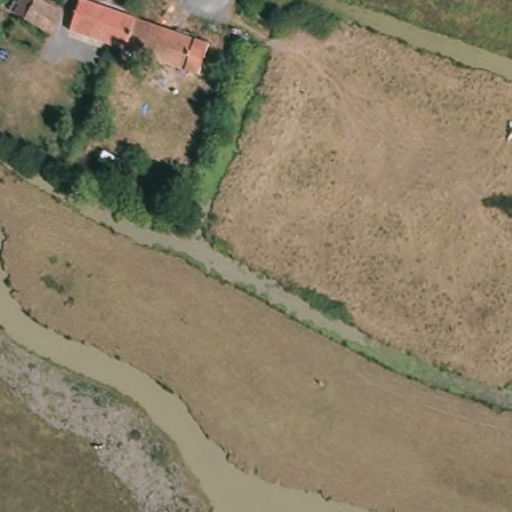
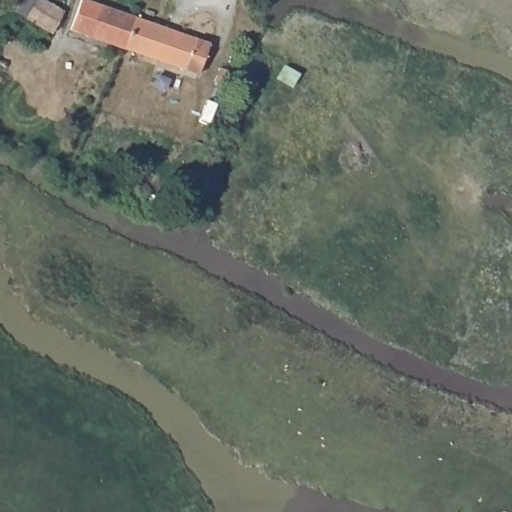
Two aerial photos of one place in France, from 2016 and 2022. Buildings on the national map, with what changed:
unchanged [(49,34),(21,20),(29,0),(33,0),(60,12),(49,34)]
unchanged [(73,30),(82,4),(136,24),(125,47),(73,30)]
unchanged [(207,49),(198,72),(125,47),(136,24),(207,49)]

